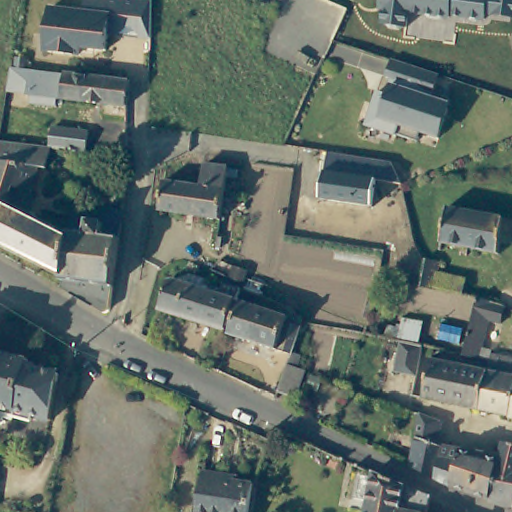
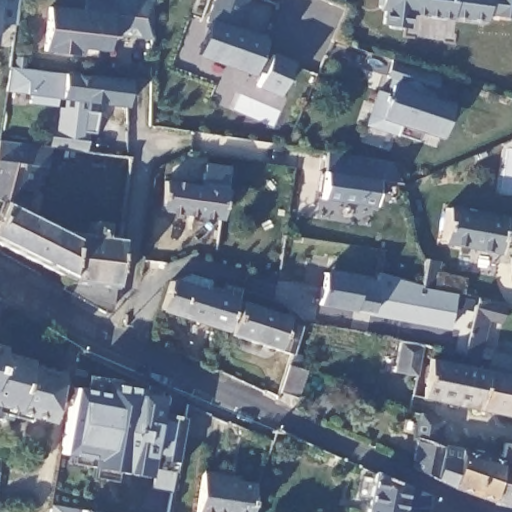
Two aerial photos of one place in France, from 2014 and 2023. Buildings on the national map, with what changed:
new [(16,25),(0,21),(0,0),(19,0),(16,25)]
unchanged [(111,37),(109,53),(85,50),(85,56),(46,52),(49,7),(86,11),(86,0),(149,0),(153,1),(151,41),(111,37)]
new [(239,29),(269,40),(264,49),(293,61),(278,99),(253,90),(261,69),(255,66),(250,77),(194,58),(216,0),(250,0),(239,29)]
unchanged [(488,23),(411,17),(410,29),(379,26),(382,0),(512,0),(512,19),(487,16),(488,23)]
unchanged [(439,74),(429,102),(449,109),(440,137),(421,132),(418,141),(378,127),(380,122),(369,117),(378,91),(390,94),(395,79),(388,77),(394,59),(439,74)]
unchanged [(127,85),(125,104),(11,91),(14,67),(128,79),(127,85)]
unchanged [(86,152),(53,150),(49,169),(37,168),(41,147),(50,147),(52,126),(90,132),(86,152)]
unchanged [(41,147),(30,205),(0,198),(0,139),(41,147)]
unchanged [(322,201),(325,171),(327,153),(392,162),(402,183),(378,181),(372,209),(322,201)]
unchanged [(231,167),(226,218),(164,212),(168,181),(204,185),(206,164),(231,167)]
unchanged [(115,317),(68,290),(69,282),(69,278),(22,256),(0,243),(0,213),(5,205),(74,241),(74,236),(89,237),(92,217),(107,220),(107,227),(126,229),(119,290),(118,303),(115,317)]
unchanged [(501,255),(440,245),(446,207),(512,219),(512,245),(503,244),(501,255)]
unchanged [(437,261),(436,273),(462,281),(460,295),(420,285),(422,276),(426,258),(437,261)]
new [(449,328),(318,305),(323,271),(359,279),(376,281),(378,273),(420,285),(454,293),(449,328)]
unchanged [(245,286),(229,332),(167,312),(179,277),(213,274),(218,276),(217,282),(226,286),(228,279),(237,282),(245,286)]
unchanged [(296,357),(233,335),(245,298),(289,313),(287,317),(307,323),(296,357)]
unchanged [(501,326),(488,322),(479,360),(461,356),(475,298),(495,302),(505,308),(501,326)]
unchanged [(6,345),(57,358),(46,402),(3,390),(0,398),(0,365),(6,345)]
unchanged [(1,346),(0,349),(0,346),(1,346)]
unchanged [(479,409),(486,376),(487,373),(489,362),(490,355),(491,352),(512,357),(512,417),(510,416),(479,409)]
unchanged [(430,362),(487,373),(486,376),(479,409),(468,407),(456,405),(422,398),(430,362)]
unchanged [(311,372),(302,402),(283,393),(292,366),(311,372)]
unchanged [(330,379),(335,381),(326,406),(308,400),(316,374),(330,379)]
new [(179,462),(150,457),(147,475),(116,470),(113,480),(85,476),(88,466),(68,463),(69,456),(58,454),(71,388),(75,390),(77,375),(140,385),(138,396),(162,399),(159,415),(185,420),(179,462)]
unchanged [(462,449),(456,486),(433,475),(415,466),(420,437),(421,432),(409,432),(410,412),(424,413),(444,420),(441,442),(441,445),(445,446),(462,449)]
unchanged [(504,457),(505,452),(507,442),(510,442),(512,443),(512,503),(495,498),(504,457)]
unchanged [(504,457),(495,498),(466,490),(456,486),(462,449),(504,457)]
unchanged [(1,462),(0,466),(0,462),(1,462)]
unchanged [(224,471),(238,472),(237,477),(257,480),(253,508),(253,512),(199,512),(205,468),(224,471)]
unchanged [(370,505),(376,472),(434,497),(431,512),(362,512),(364,503),(370,505)]
new [(84,511),(93,512),(47,512),(49,502),(82,507),(84,511)]

